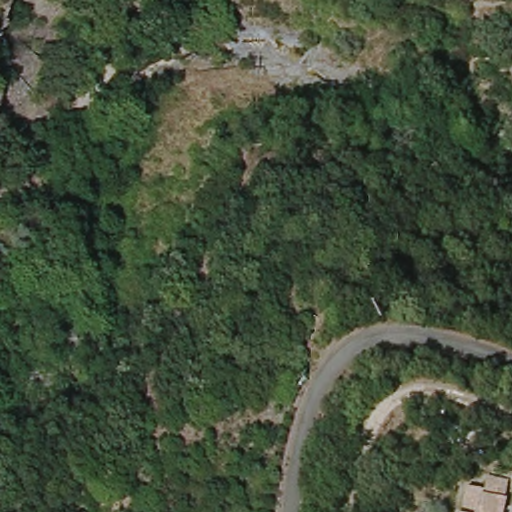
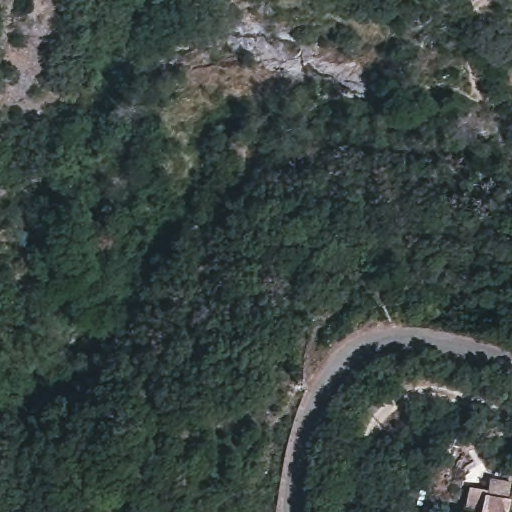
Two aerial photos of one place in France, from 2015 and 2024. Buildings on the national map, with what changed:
unchanged [(486,490),(487,477),(512,480),(512,484),(508,512),(459,512),(463,486),(486,490)]

